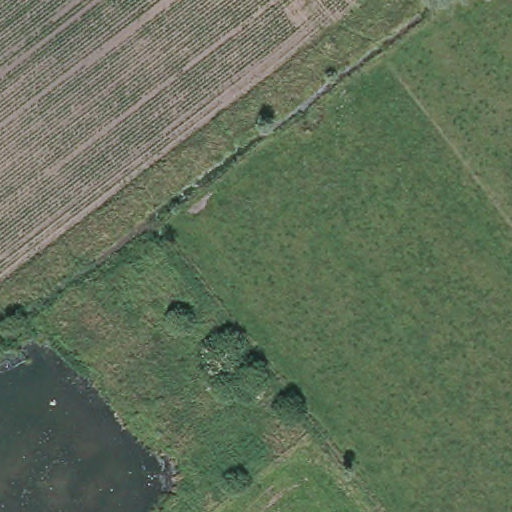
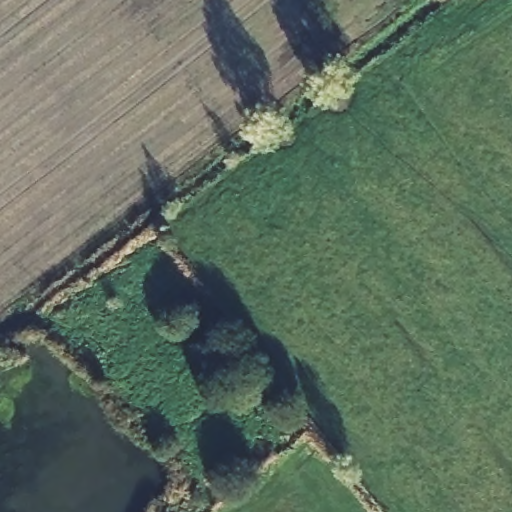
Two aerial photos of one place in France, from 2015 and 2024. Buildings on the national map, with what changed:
[]

